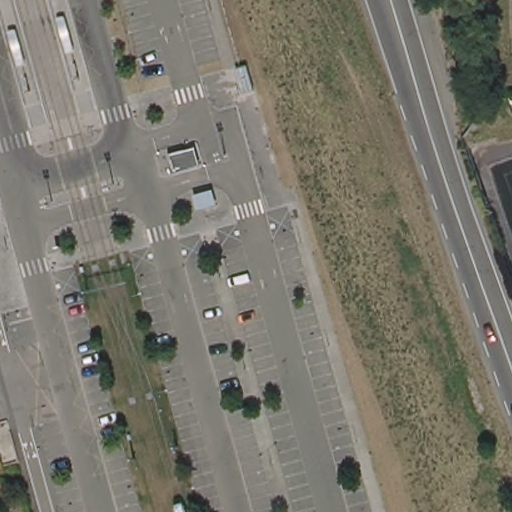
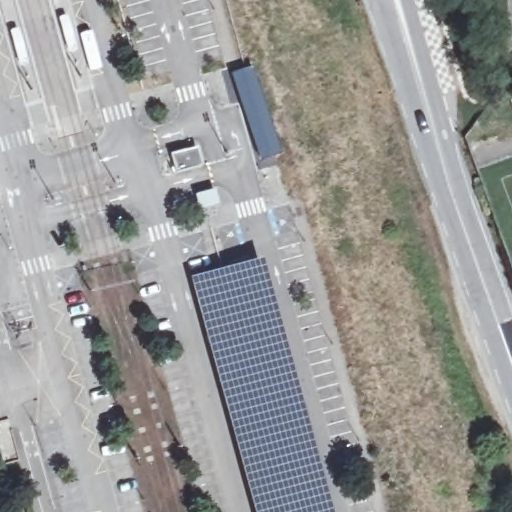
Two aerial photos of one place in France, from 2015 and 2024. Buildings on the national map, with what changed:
unchanged [(187,148),(187,149),(196,147),(201,165),(192,167),(177,172),(172,152),(187,148)]
new [(263,253),(334,512),(254,512),(242,465),(188,274),(263,253)]

